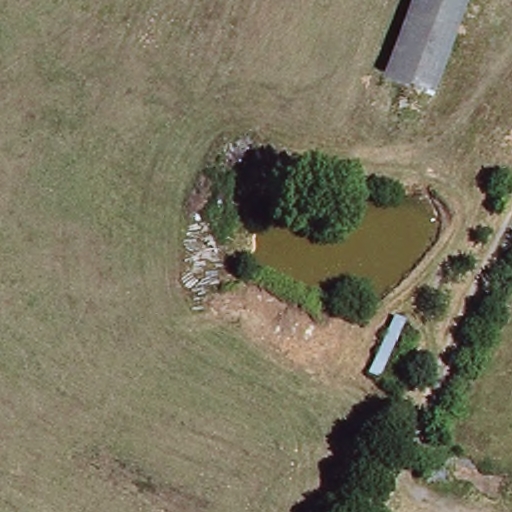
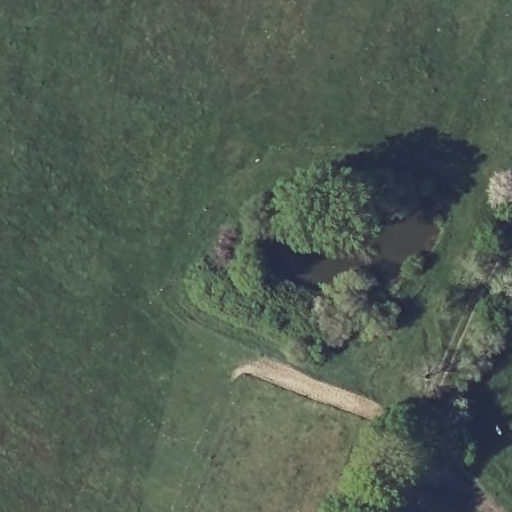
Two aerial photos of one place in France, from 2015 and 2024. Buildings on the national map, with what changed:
demolished [(397,127),(365,114),(412,0),(443,0),(397,127)]
demolished [(397,127),(443,0),(466,0),(411,134),(397,127)]

